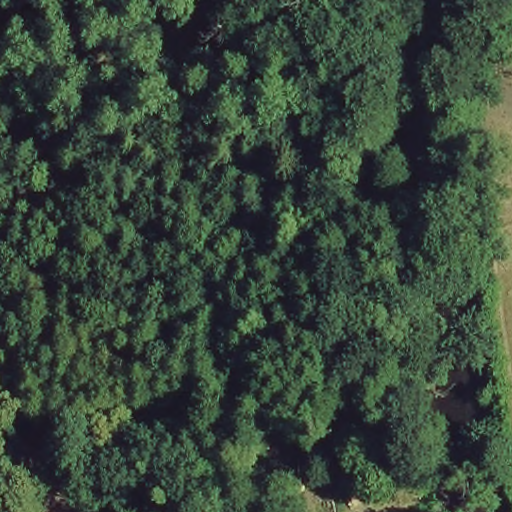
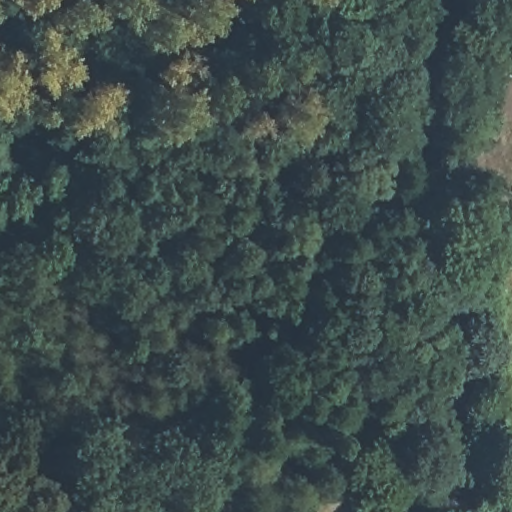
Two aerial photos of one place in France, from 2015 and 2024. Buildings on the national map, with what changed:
unchanged [(500,9),(506,0),(512,0),(512,23),(500,9)]
unchanged [(512,48),(512,66),(495,85),(467,65),(488,33),(512,48)]

